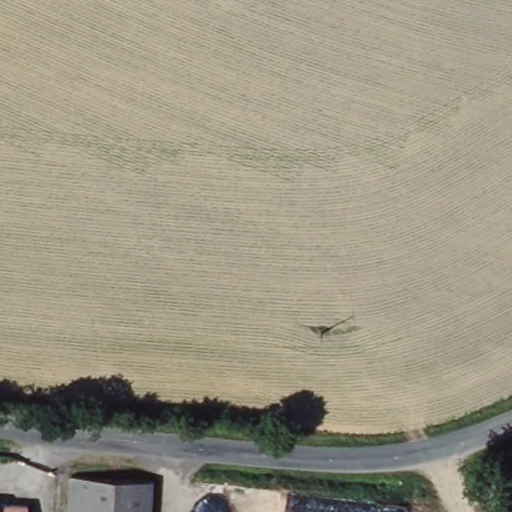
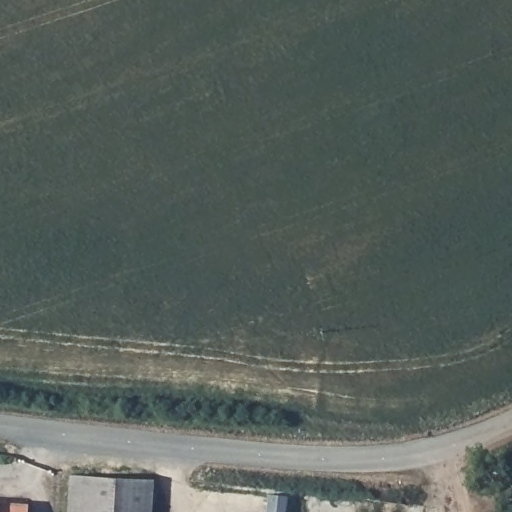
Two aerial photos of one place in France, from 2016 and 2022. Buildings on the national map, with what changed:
unchanged [(158,480),(156,512),(73,512),(76,475),(158,480)]
unchanged [(33,512),(0,512),(0,503),(33,505),(33,512)]

